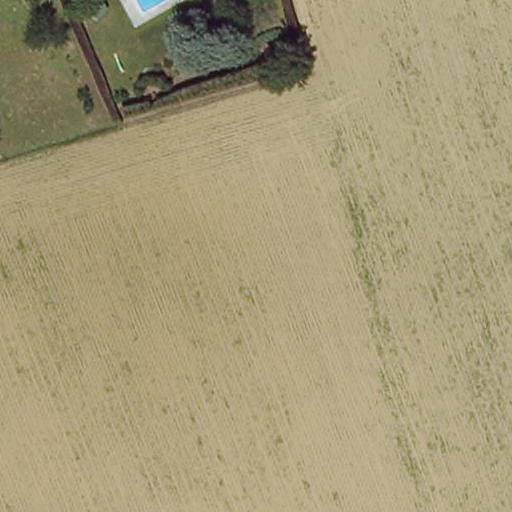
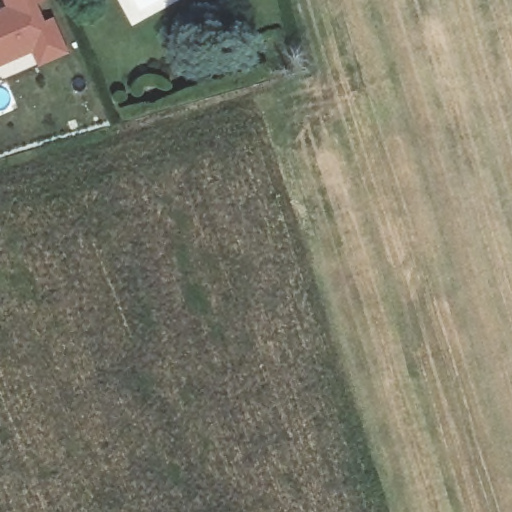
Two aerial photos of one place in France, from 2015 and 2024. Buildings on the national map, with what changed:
new [(2,0),(45,0),(47,2),(38,6),(45,25),(55,20),(68,56),(38,70),(32,55),(0,69),(0,11),(5,9),(2,0)]

